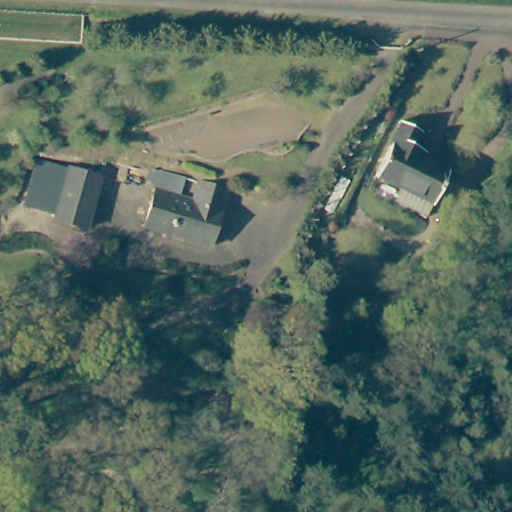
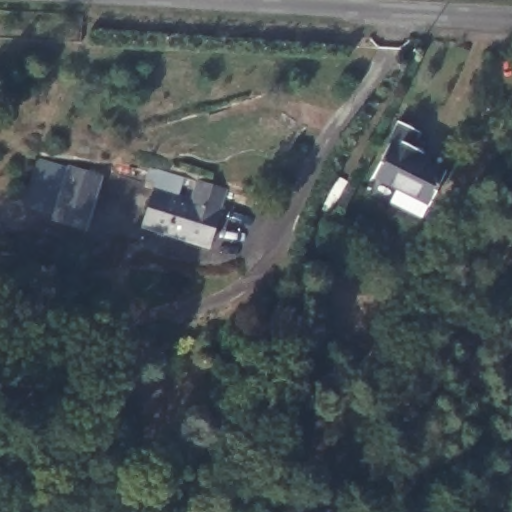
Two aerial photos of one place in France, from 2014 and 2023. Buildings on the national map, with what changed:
unchanged [(398,121),(417,131),(409,145),(420,151),(417,157),(445,173),(419,219),(364,189),(398,121)]
unchanged [(23,206),(38,157),(71,168),(56,218),(23,206)]
unchanged [(56,218),(72,165),(106,176),(89,229),(56,218)]
unchanged [(233,190),(214,246),(148,224),(159,188),(195,200),(203,180),(233,190)]

